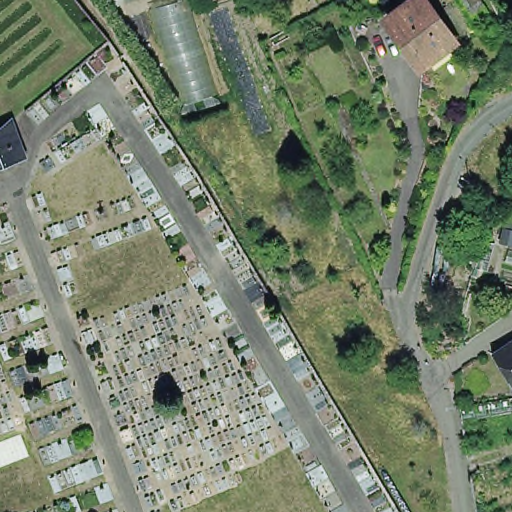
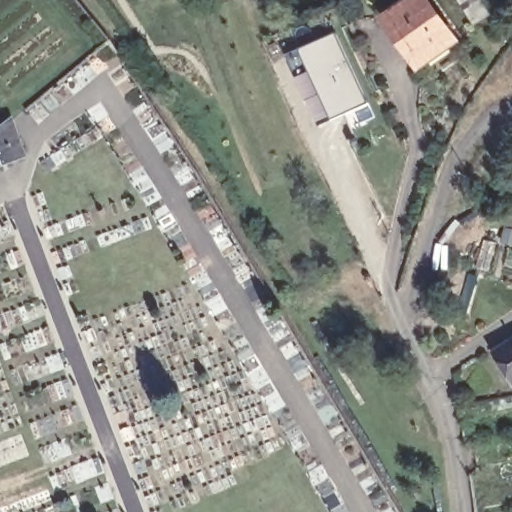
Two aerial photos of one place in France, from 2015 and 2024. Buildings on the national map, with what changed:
demolished [(121,0),(191,0),(225,104),(185,111),(146,2),(122,6),(121,0)]
unchanged [(209,0),(211,0),(209,1),(209,0)]
unchanged [(386,24),(420,0),(452,46),(420,70),(386,24)]
unchanged [(458,0),(479,0),(488,14),(473,24),(458,0)]
new [(300,50),(336,34),(370,104),(334,121),(320,127),(287,56),(300,50)]
unchanged [(11,121),(23,156),(0,166),(0,130),(6,125),(11,121)]
unchanged [(493,352),(512,341),(512,384),(493,352)]
unchanged [(460,405),(512,400),(512,413),(463,419),(460,405)]

